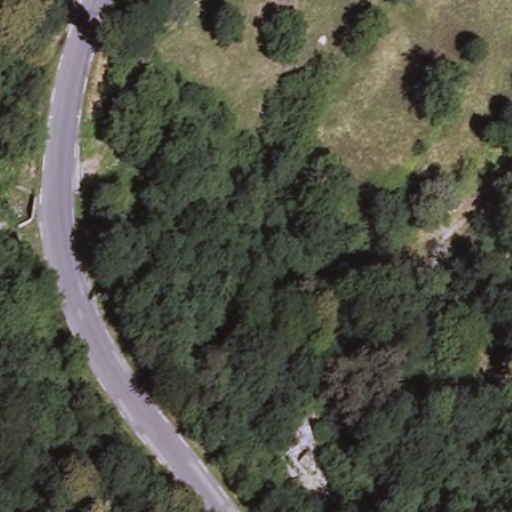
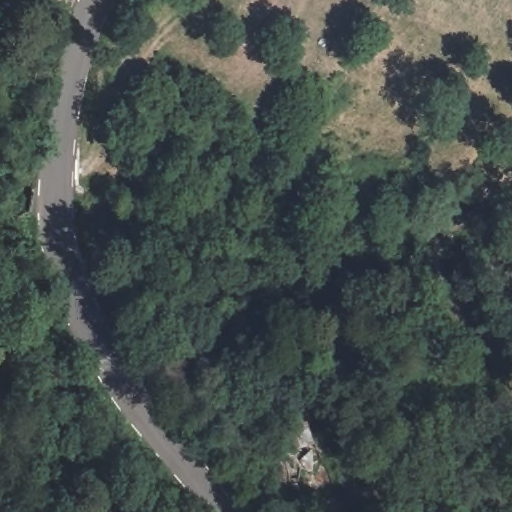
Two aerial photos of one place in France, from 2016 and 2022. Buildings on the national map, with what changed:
unchanged [(258,429),(289,415),(306,407),(319,436),(298,446),(272,457),(258,429)]

